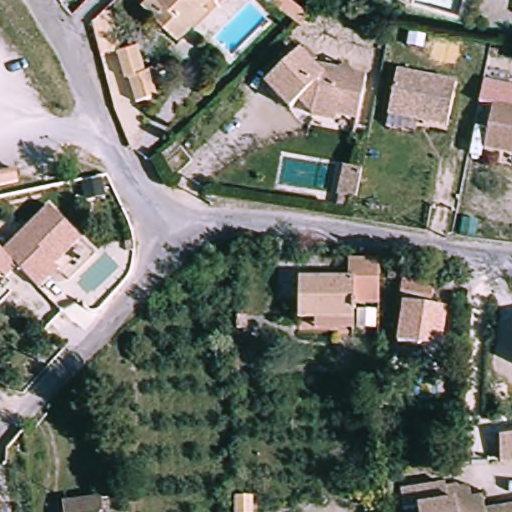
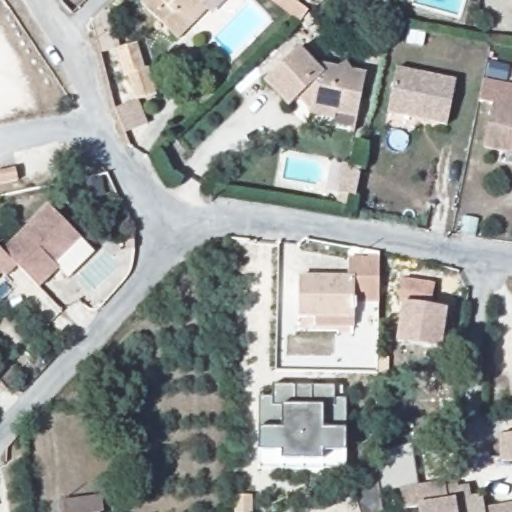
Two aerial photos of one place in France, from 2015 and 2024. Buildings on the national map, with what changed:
unchanged [(151,14),(164,3),(161,0),(201,0),(208,7),(186,29),(176,39),(151,14)]
unchanged [(293,31),(264,5),(268,0),(284,0),(307,17),(293,31)]
unchanged [(133,47),(153,99),(136,104),(126,76),(120,78),(112,54),(133,47)]
unchanged [(289,99),(283,105),(259,81),(293,47),(308,62),(356,63),(355,108),(316,107),(301,109),(289,99)]
unchanged [(457,81),(451,126),(392,115),(398,70),(457,81)]
unchanged [(507,161),(506,147),(495,147),(496,102),(512,102),(512,161),(507,161)]
unchanged [(353,196),(338,195),(342,165),(359,167),(353,196)]
unchanged [(36,288),(18,265),(5,275),(1,270),(0,271),(0,243),(4,249),(56,207),(84,242),(55,265),(58,270),(48,278),(36,288)]
unchanged [(312,323),(311,311),(297,312),(296,275),(347,271),(346,254),(376,252),(377,266),(378,295),(350,295),(351,310),(351,322),(312,323)]
unchanged [(393,268),(393,281),(381,282),(380,269),(393,268)]
unchanged [(429,280),(431,301),(444,301),(446,344),(403,345),(403,303),(396,303),(396,281),(429,280)]
new [(273,398),(273,387),(333,387),(333,398),(346,399),(344,470),(259,468),(259,397),(273,398)]
unchanged [(502,461),(501,435),(512,433),(512,461),(502,461)]
new [(354,479),(378,475),(383,512),(360,512),(354,479)]
unchanged [(416,498),(401,498),(399,480),(444,476),(446,495),(458,494),(461,512),(417,512),(416,498)]
unchanged [(458,494),(480,491),(482,502),(506,500),(512,500),(512,512),(461,512),(458,494)]
unchanged [(102,495),(103,512),(62,512),(61,497),(102,495)]

